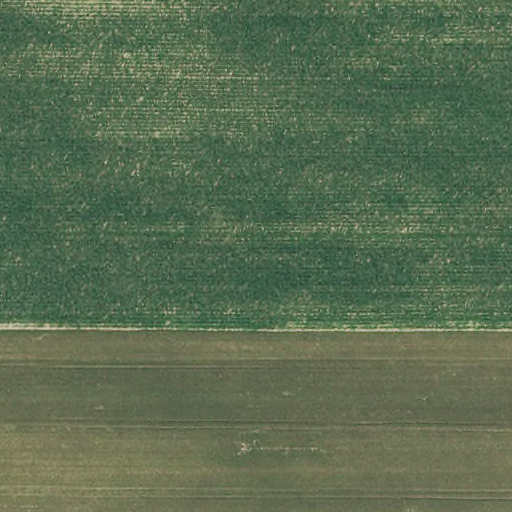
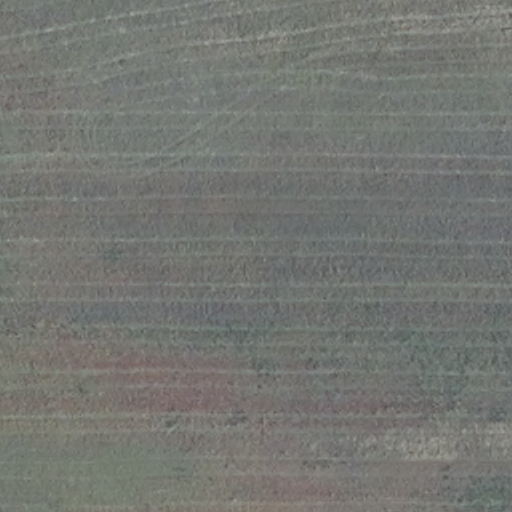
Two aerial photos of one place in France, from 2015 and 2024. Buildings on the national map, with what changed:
[]

